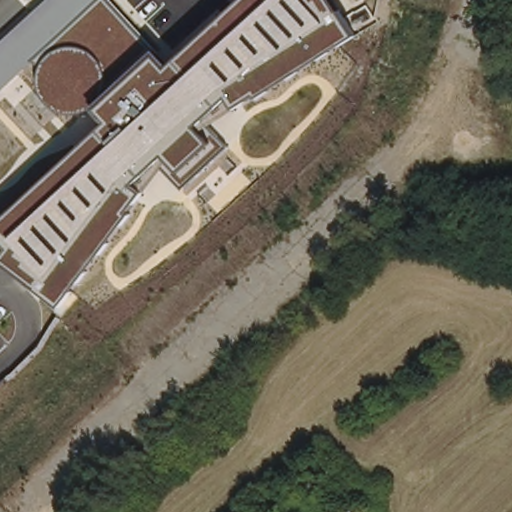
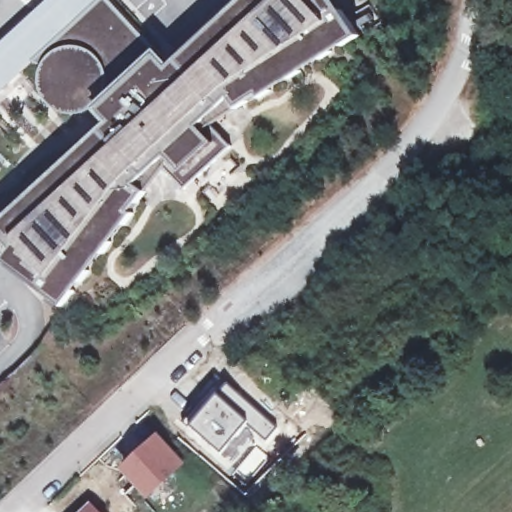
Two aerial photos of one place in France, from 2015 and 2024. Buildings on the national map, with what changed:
unchanged [(259,96),(258,93),(235,107),(208,125),(228,145),(183,187),(161,167),(143,191),(125,212),(129,215),(61,305),(3,261),(13,248),(0,234),(0,225),(108,123),(98,110),(93,107),(85,112),(73,115),(60,111),(48,104),(42,96),(38,83),(39,72),(41,66),(34,60),(0,91),(0,44),(48,0),(106,0),(153,48),(171,66),(243,0),(331,0),(354,34),(259,96)]
new [(195,401),(208,387),(211,390),(216,385),(211,381),(215,377),(226,386),(276,428),(266,441),(259,435),(231,467),(221,456),(191,430),(186,425),(183,423),(198,404),(195,401)]
new [(158,436),(184,466),(147,502),(118,472),(158,436)]
unchanged [(356,502),(368,512),(349,512),(356,502)]
new [(89,504),(97,512),(82,512),(89,504)]

